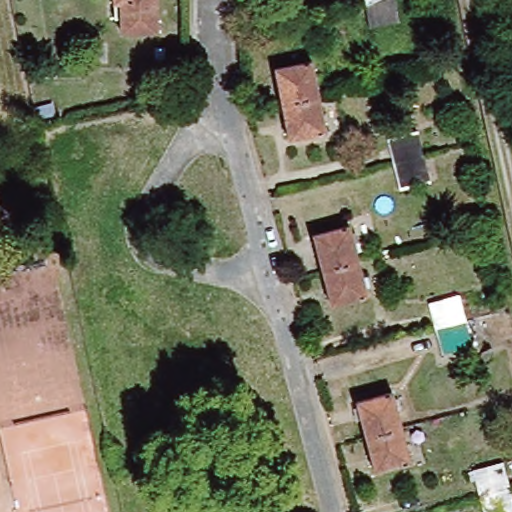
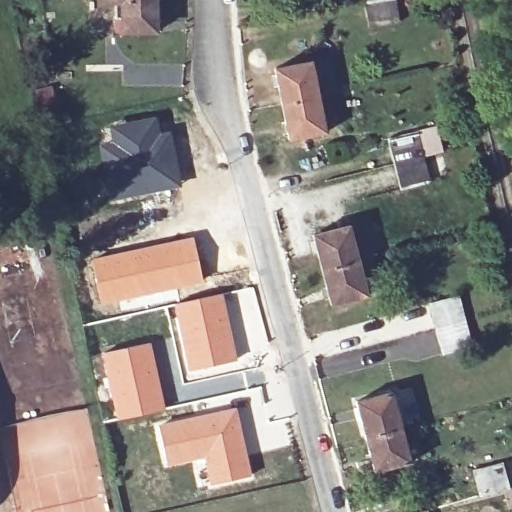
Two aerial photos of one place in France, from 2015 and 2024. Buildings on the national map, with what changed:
unchanged [(124,30),(123,17),(116,17),(116,0),(157,0),(158,30),(124,30)]
unchanged [(364,0),(395,0),(398,22),(369,28),(364,0)]
unchanged [(291,140),(275,69),(311,60),(326,131),(291,140)]
new [(52,84),(57,109),(36,113),(31,89),(52,84)]
new [(110,139),(107,125),(157,115),(160,130),(171,129),(181,185),(105,199),(97,142),(110,139)]
unchanged [(430,182),(400,190),(388,139),(417,131),(430,182)]
unchanged [(367,295),(331,305),(313,234),(350,225),(367,295)]
new [(193,235),(203,280),(134,297),(100,304),(91,257),(193,235)]
new [(222,292),(237,358),(187,370),(172,303),(222,292)]
unchanged [(443,355),(430,304),(458,296),(472,347),(443,355)]
new [(150,340),(165,408),(115,420),(99,352),(150,340)]
new [(359,349),(364,367),(324,378),(319,360),(359,349)]
unchanged [(375,471),(357,401),(393,391),(412,462),(375,471)]
new [(236,405),(251,475),(209,484),(202,456),(167,465),(157,423),(236,405)]
unchanged [(512,481),(512,512),(488,512),(479,475),(508,467),(512,481)]
new [(427,510),(428,512),(420,512),(427,510)]

